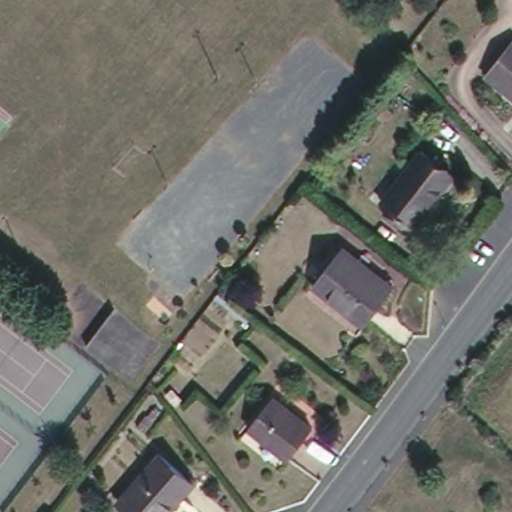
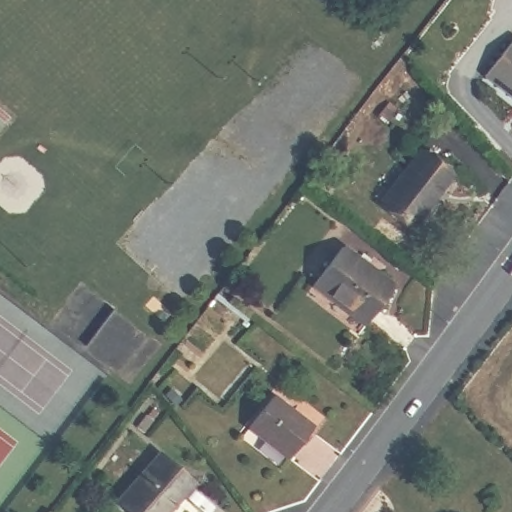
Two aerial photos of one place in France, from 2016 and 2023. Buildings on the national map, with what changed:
unchanged [(512,36),(512,95),(484,72),(512,36)]
unchanged [(451,172),(413,224),(381,200),(420,149),(451,172)]
unchanged [(392,282),(364,320),(314,281),(341,242),(392,282)]
unchanged [(173,310),(165,319),(145,302),(154,292),(173,310)]
unchanged [(311,427),(285,458),(247,427),(272,397),(311,427)]
unchanged [(174,497),(162,512),(133,512),(114,496),(156,450),(186,475),(191,479),(174,497)]

